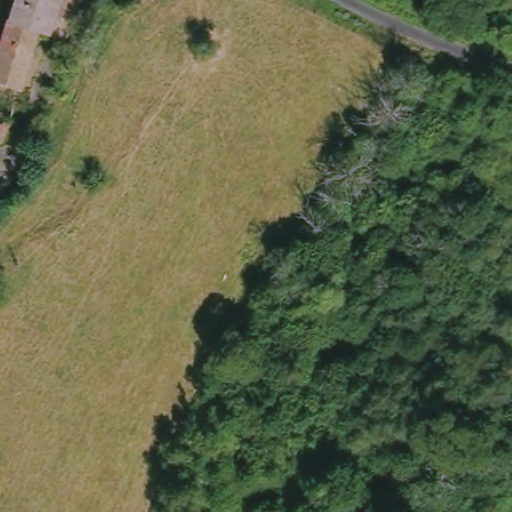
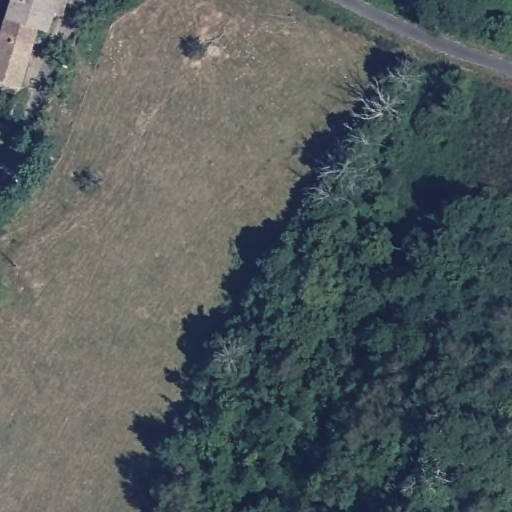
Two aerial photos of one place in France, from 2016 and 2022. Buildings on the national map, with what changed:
unchanged [(30,36),(0,26),(0,21),(6,0),(51,0),(40,37),(30,36)]
unchanged [(10,88),(0,85),(0,26),(30,36),(10,88)]
unchanged [(0,112),(0,85),(10,88),(0,112)]

